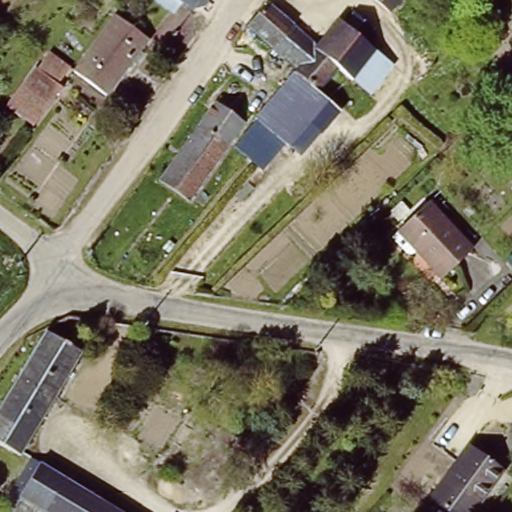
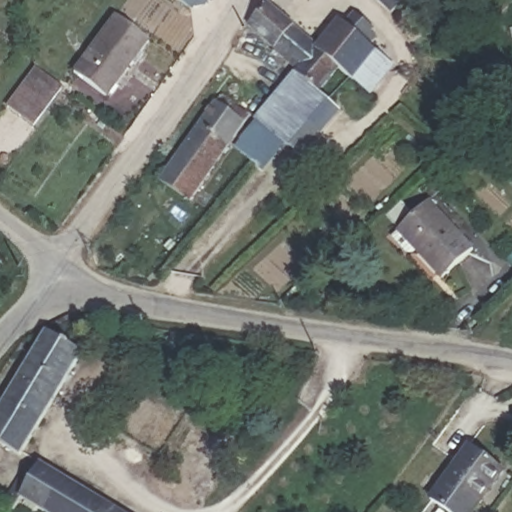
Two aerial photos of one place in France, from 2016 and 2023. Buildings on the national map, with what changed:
unchanged [(183,9),(175,16),(153,0),(200,0),(191,12),(183,9)]
unchanged [(265,0),(297,28),(272,54),(241,29),(262,0),(265,0)]
unchanged [(374,0),(402,0),(387,14),(374,0)]
unchanged [(348,74),(342,69),(336,63),(312,42),(335,17),(340,22),(352,10),(362,19),(360,22),(369,30),(361,40),(365,44),(387,63),(365,88),(348,74)]
unchanged [(151,41),(111,95),(72,67),(114,12),(151,41)]
unchanged [(297,28),(312,42),(336,63),(315,88),(291,69),(272,54),(297,28)]
unchanged [(60,86),(30,125),(5,105),(35,66),(60,86)]
unchanged [(237,137),(251,120),(291,69),(315,88),(327,98),(335,105),(296,155),(273,135),(257,154),(237,137)]
unchanged [(186,201),(155,181),(215,94),(243,115),(186,201)]
unchanged [(438,279),(415,255),(418,252),(400,234),(429,205),(470,247),(438,279)]
unchanged [(20,455),(0,443),(0,396),(40,331),(81,356),(20,455)]
unchanged [(503,470),(473,512),(446,512),(425,496),(466,441),(503,470)]
unchanged [(1,500),(29,458),(121,512),(41,512),(17,498),(11,506),(1,500)]

